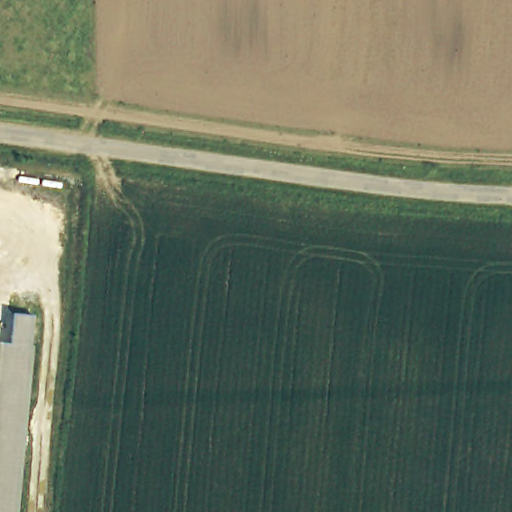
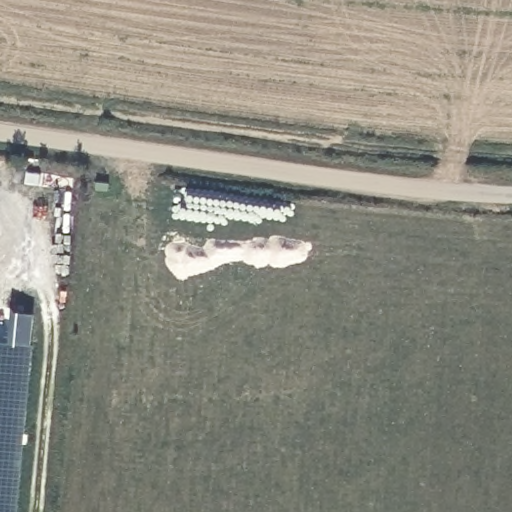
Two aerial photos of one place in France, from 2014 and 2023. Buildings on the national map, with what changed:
unchanged [(11,315),(32,317),(14,512),(0,512),(0,343),(9,344),(11,315)]

